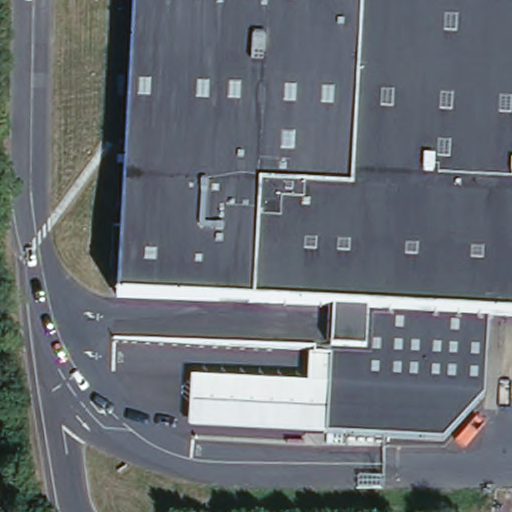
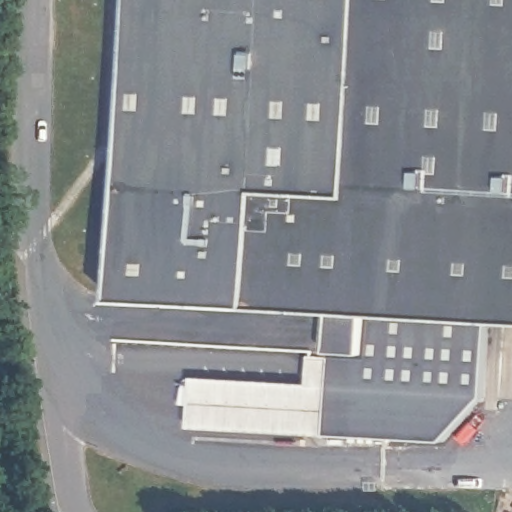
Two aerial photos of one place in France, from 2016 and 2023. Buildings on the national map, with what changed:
unchanged [(369,314),(367,354),(332,353),(332,312),(255,307),(114,299),(128,0),(512,0),(512,321),(369,314)]
unchanged [(482,396),(440,442),(327,434),(189,428),(191,377),(307,382),(308,353),(332,353),(367,354),(369,314),(485,319),(482,396)]

